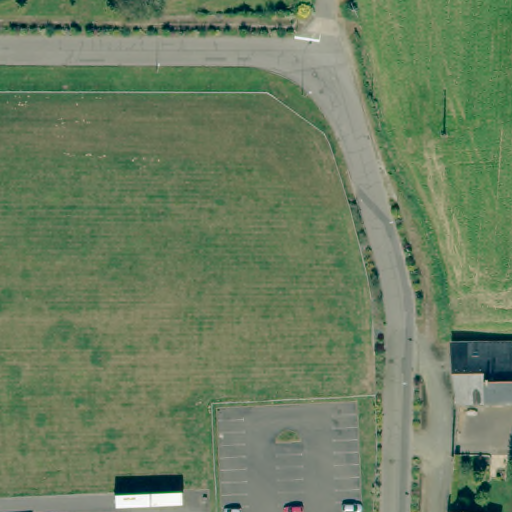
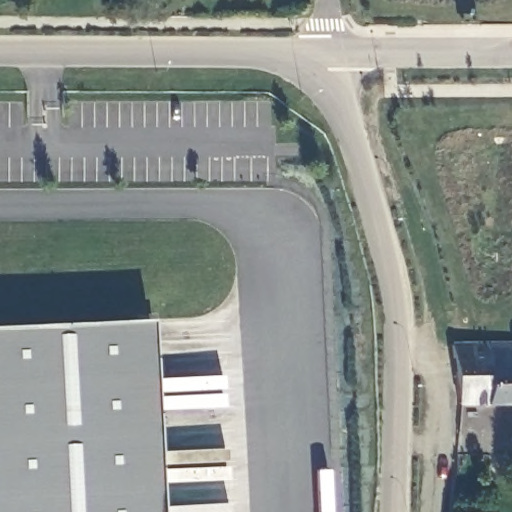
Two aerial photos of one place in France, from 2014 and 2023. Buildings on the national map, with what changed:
new [(158,512),(0,512),(0,328),(149,321),(158,512)]
unchanged [(512,339),(512,399),(487,399),(459,399),(451,340),(512,339)]
unchanged [(475,512),(439,512),(439,509),(470,511),(475,512)]

